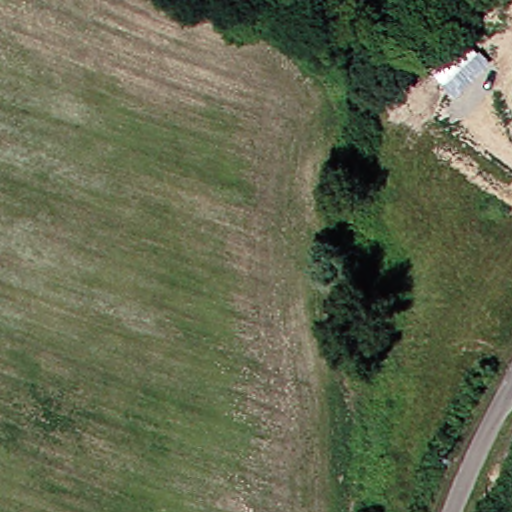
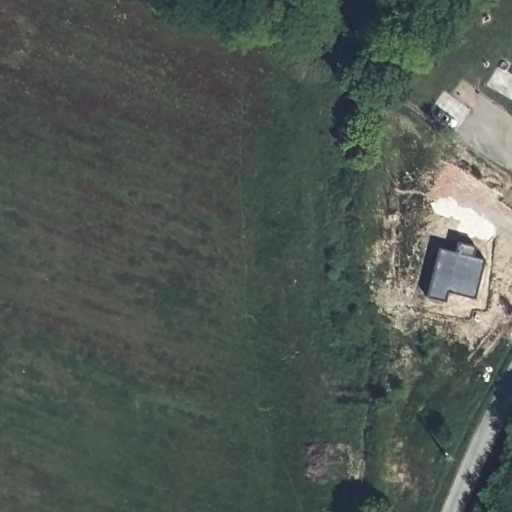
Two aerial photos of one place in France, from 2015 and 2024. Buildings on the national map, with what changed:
new [(474,298),(448,291),(445,302),(428,297),(438,247),(455,252),(457,242),(475,246),(473,257),(485,260),(474,298)]

